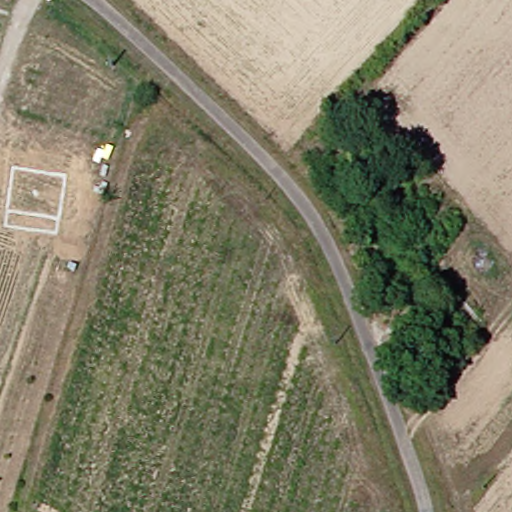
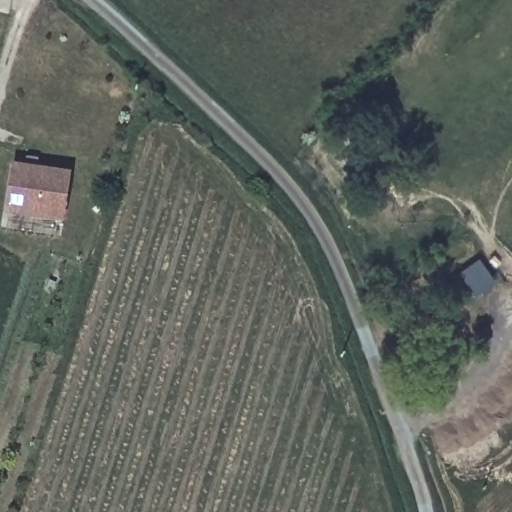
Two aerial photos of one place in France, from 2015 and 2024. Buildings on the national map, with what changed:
new [(62,223),(3,215),(10,164),(69,172),(62,223)]

